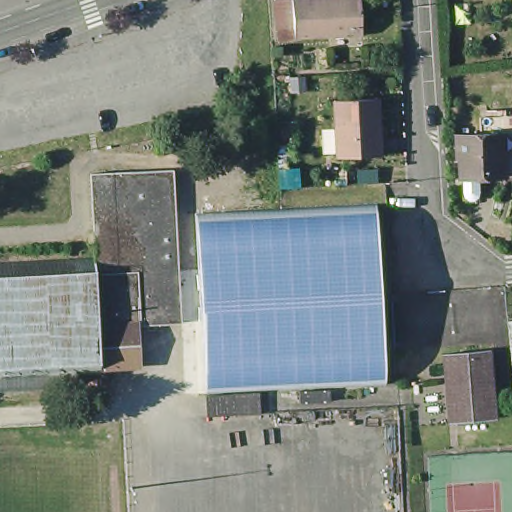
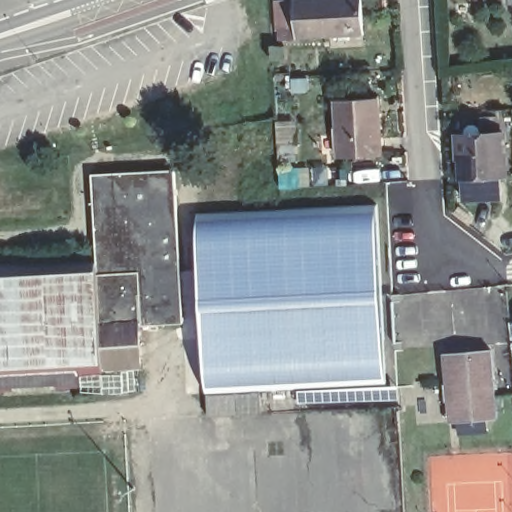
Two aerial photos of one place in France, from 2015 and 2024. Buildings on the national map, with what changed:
unchanged [(291,31),(289,3),(309,2),(376,0),(376,39),(310,41),(291,41),(291,31)]
unchanged [(335,107),(378,104),(381,160),(338,163),(335,107)]
unchanged [(456,137),(494,135),(501,135),(503,178),(497,178),(458,180),(456,137)]
unchanged [(278,154),(286,154),(286,168),(278,168),(278,154)]
unchanged [(145,176),(169,174),(176,276),(179,328),(153,329),(145,176)]
unchanged [(137,330),(136,326),(123,327),(120,327),(114,327),(98,328),(94,264),(98,264),(97,260),(92,179),(145,176),(153,329),(137,330)]
unchanged [(199,270),(196,213),(279,209),(378,204),(387,382),(289,388),(206,393),(203,337),(199,270)]
unchanged [(98,328),(100,375),(75,376),(0,381),(0,269),(94,264),(98,328)]
unchanged [(123,336),(134,336),(138,372),(100,375),(98,328),(114,327),(114,333),(121,332),(120,327),(123,327),(123,336)]
unchanged [(445,422),(447,393),(448,384),(449,354),(497,356),(494,423),(452,422),(450,422),(445,422)]
unchanged [(75,380),(76,392),(0,396),(0,381),(75,376),(75,380)]
unchanged [(331,400),(300,402),(300,397),(300,390),(331,388),(331,395),(331,400)]
unchanged [(264,414),(210,417),(209,403),(208,394),(264,391),(264,399),(264,414)]

